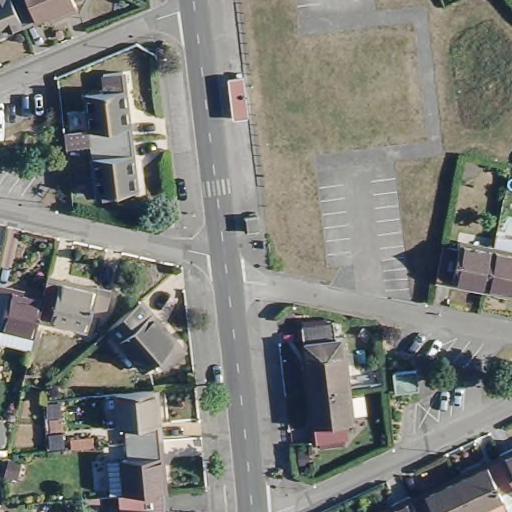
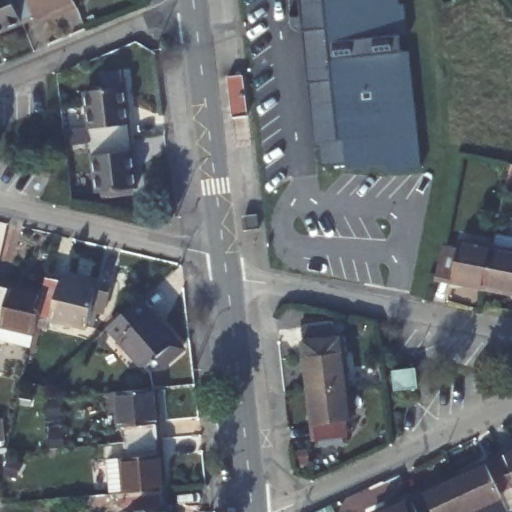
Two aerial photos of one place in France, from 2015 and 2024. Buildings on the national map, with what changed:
unchanged [(21,24),(0,32),(0,0),(11,0),(21,24)]
unchanged [(74,9),(56,17),(53,11),(21,24),(11,0),(70,0),(74,9)]
new [(398,7),(402,6),(406,37),(398,38),(400,54),(407,54),(419,171),(386,176),(385,168),(345,172),(345,167),(320,169),(318,150),(313,150),(306,85),(317,84),(312,33),(298,35),(295,33),(291,30),(289,25),(288,20),(299,19),(297,0),(397,0),(398,7)]
unchanged [(94,133),(89,95),(109,92),(107,75),(126,73),(135,140),(95,144),(70,147),(69,136),(94,133)]
new [(241,77),(246,118),(231,119),(226,79),(241,77)]
unchanged [(140,190),(101,195),(95,144),(135,140),(140,190)]
demolished [(259,211),(246,212),(246,209),(244,196),(257,194),(258,199),(259,211)]
unchanged [(485,289),(492,249),(494,240),(512,244),(512,294),(485,289)]
unchanged [(434,280),(441,247),(456,250),(457,243),(492,249),(485,289),(434,280)]
unchanged [(96,289),(96,286),(111,289),(108,308),(101,313),(91,311),(87,327),(39,315),(41,304),(43,297),(47,278),(96,289)]
unchanged [(30,293),(43,297),(41,304),(39,315),(34,333),(2,326),(0,332),(0,286),(30,293)]
unchanged [(180,352),(161,368),(155,361),(145,370),(115,333),(103,342),(98,337),(140,301),(180,352)]
unchanged [(305,326),(335,324),(335,341),(338,341),(339,357),(346,357),(349,391),(311,395),(305,326)]
unchanged [(421,373),(423,394),(401,396),(399,377),(421,373)]
unchanged [(143,391),(149,390),(153,390),(155,409),(158,442),(148,442),(126,444),(125,429),(119,429),(118,417),(107,417),(106,394),(143,391)]
unchanged [(352,425),(346,425),(347,440),(316,444),(311,395),(349,391),(352,425)]
unchanged [(71,439),(78,439),(78,436),(93,436),(94,447),(46,451),(45,441),(71,439)]
unchanged [(152,492),(130,494),(117,495),(115,495),(109,496),(108,461),(127,460),(126,444),(148,442),(158,442),(162,480),(163,491),(152,492)]
unchanged [(497,456),(496,454),(512,446),(512,488),(497,456)]
unchanged [(506,508),(507,511),(503,512),(469,512),(453,478),(497,456),(512,488),(512,505),(506,508)]
unchanged [(469,512),(416,512),(409,498),(453,478),(469,512)]
unchanged [(130,494),(152,492),(163,491),(164,500),(165,512),(118,512),(117,495),(130,494)]
unchanged [(391,503),(407,495),(409,498),(416,512),(379,512),(392,506),(391,503)]

